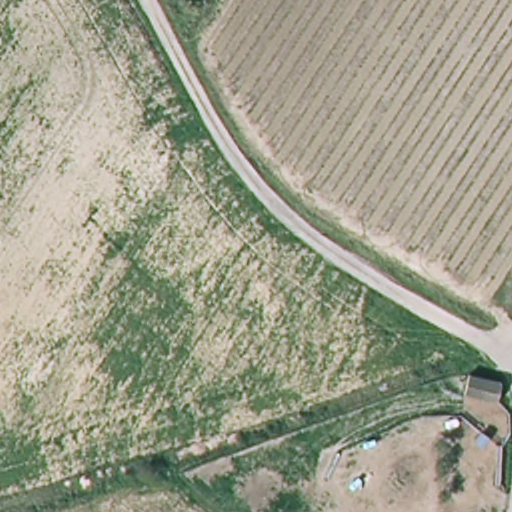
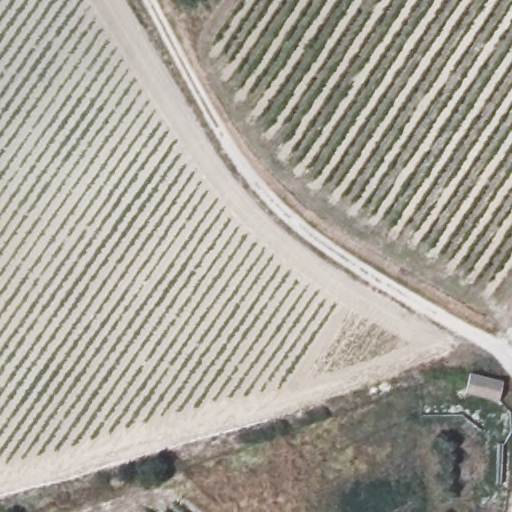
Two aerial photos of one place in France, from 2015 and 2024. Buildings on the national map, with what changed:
unchanged [(497,394),(464,393),(465,371),(492,371),(498,372),(497,394)]

